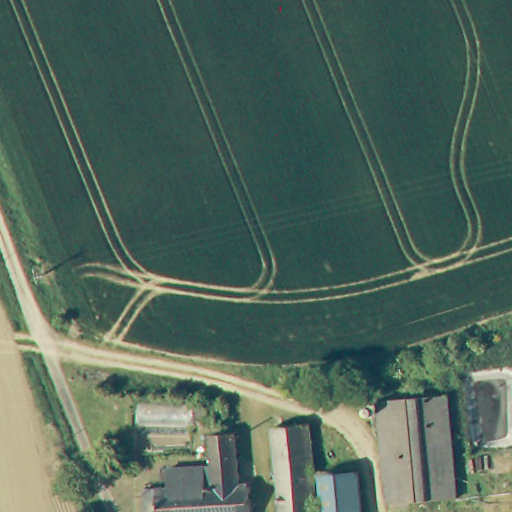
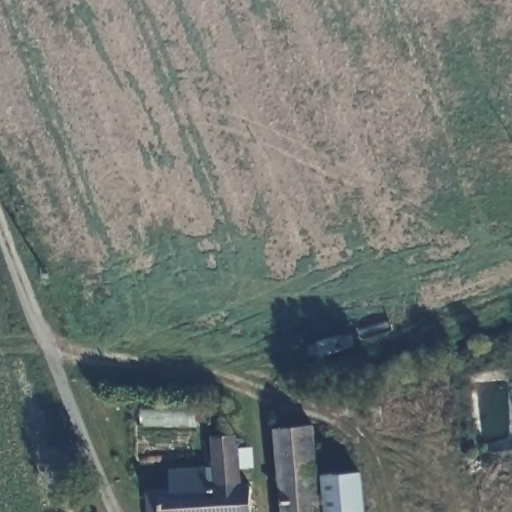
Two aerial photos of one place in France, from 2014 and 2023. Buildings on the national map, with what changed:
demolished [(381,401),(450,395),(458,499),(390,505),(381,401)]
unchanged [(210,406),(211,420),(197,420),(196,406),(210,406)]
unchanged [(308,425),(314,512),(278,512),(271,428),(308,425)]
unchanged [(142,512),(141,491),(165,490),(164,470),(209,467),(208,436),(232,435),(235,486),(245,486),(247,512),(142,512)]
unchanged [(358,512),(322,512),(318,476),(355,472),(358,512)]

